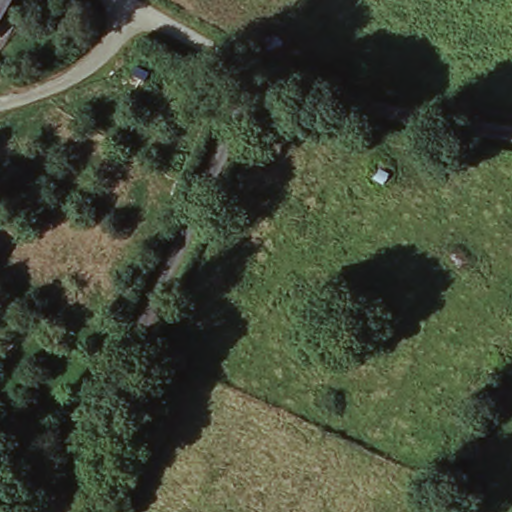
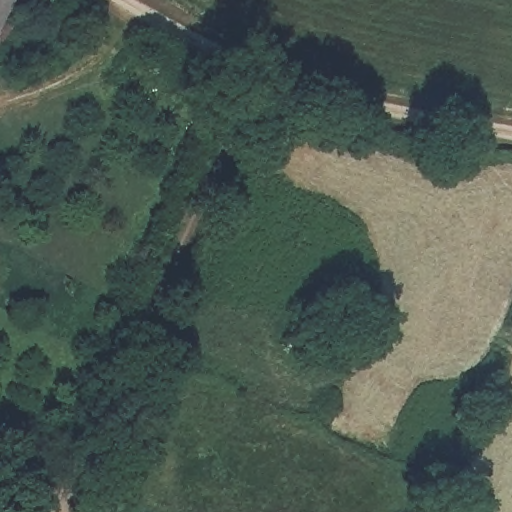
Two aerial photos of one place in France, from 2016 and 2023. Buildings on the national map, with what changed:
unchanged [(0,0),(16,0),(0,29),(0,0)]

